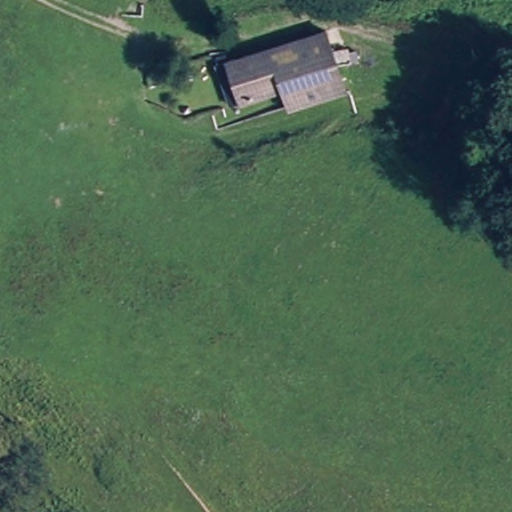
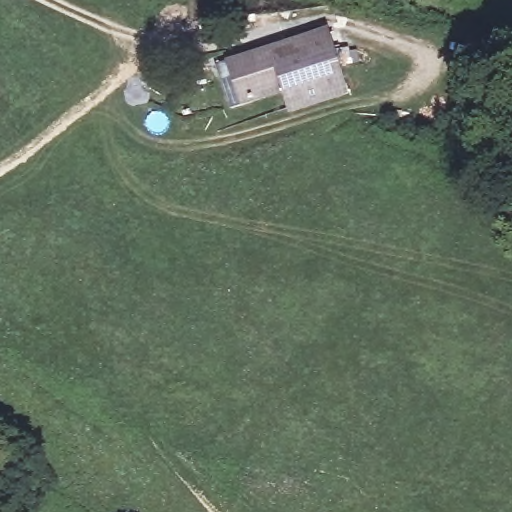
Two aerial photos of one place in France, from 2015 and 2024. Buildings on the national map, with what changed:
unchanged [(326,30),(346,95),(286,114),(273,98),(231,109),(215,67),(326,30)]

